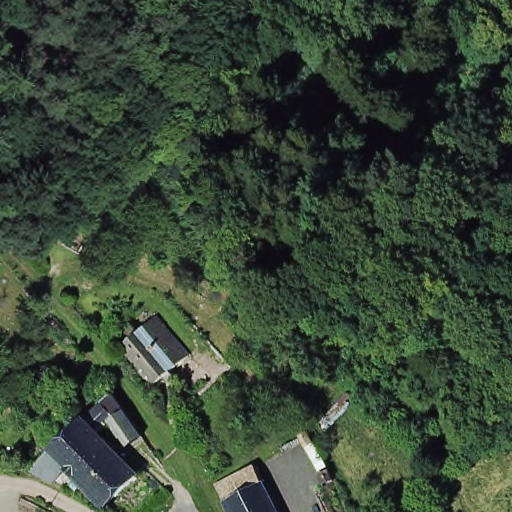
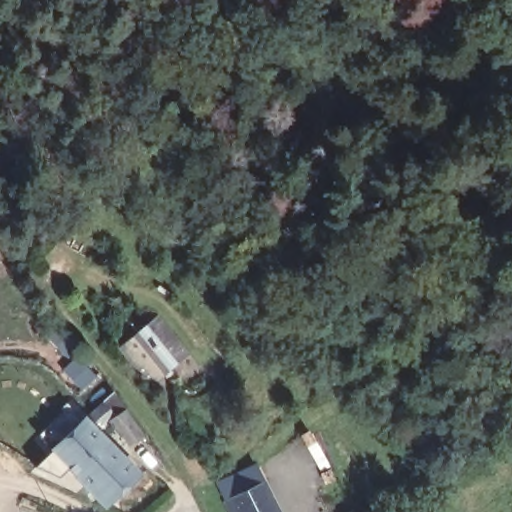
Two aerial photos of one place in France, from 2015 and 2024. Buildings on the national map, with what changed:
unchanged [(193,353),(156,384),(122,345),(160,314),(193,353)]
unchanged [(136,434),(123,444),(100,420),(90,430),(79,419),(107,394),(108,395),(136,434)]
unchanged [(80,482),(70,489),(62,485),(24,468),(47,447),(79,419),(90,430),(103,444),(133,474),(100,503),(80,482)]
unchanged [(226,501),(218,483),(257,464),(261,471),(266,482),(273,496),(281,512),(232,512),(227,503),(226,501)]
unchanged [(324,512),(314,490),(326,484),(339,512),(324,512)]

